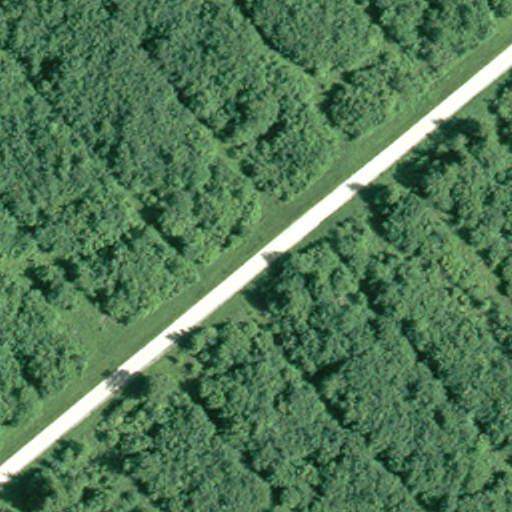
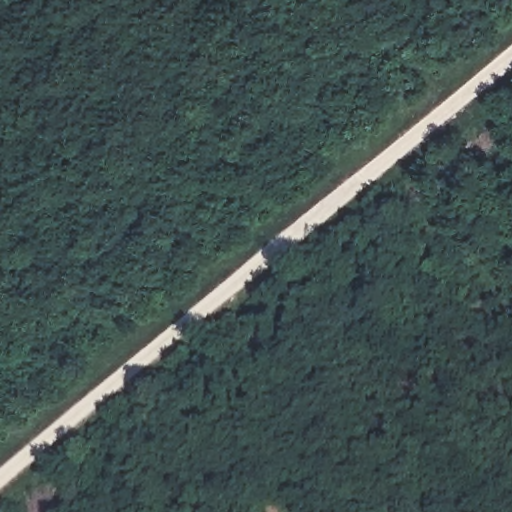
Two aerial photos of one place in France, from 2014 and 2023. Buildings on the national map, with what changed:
[]

